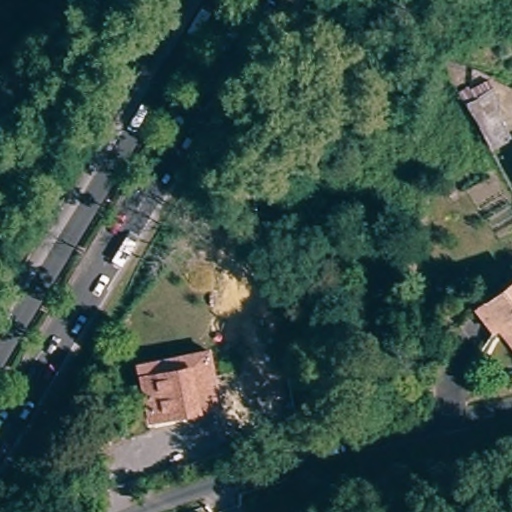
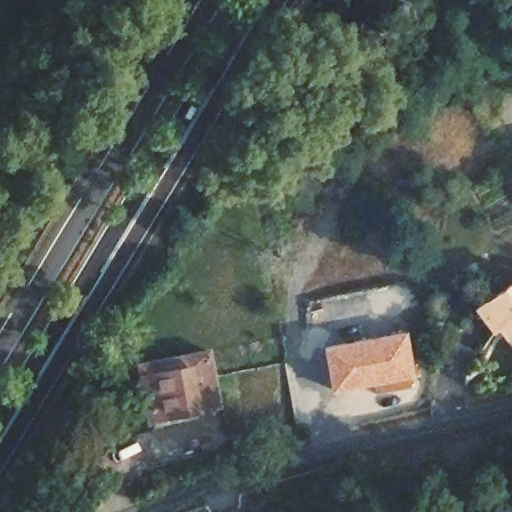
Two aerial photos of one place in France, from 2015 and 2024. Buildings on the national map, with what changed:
unchanged [(462,99),(490,83),(496,94),(494,111),(506,133),(486,144),(474,121),(462,99)]
unchanged [(481,305),(512,282),(512,346),(481,305)]
new [(407,327),(417,387),(377,393),(375,384),(329,391),(320,343),(407,327)]
unchanged [(197,410),(150,420),(142,378),(189,369),(197,410)]

